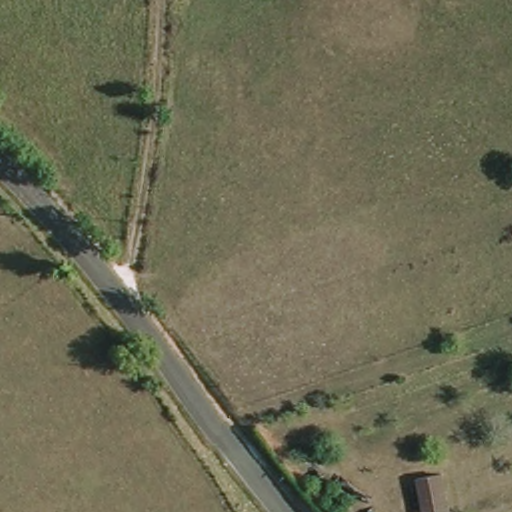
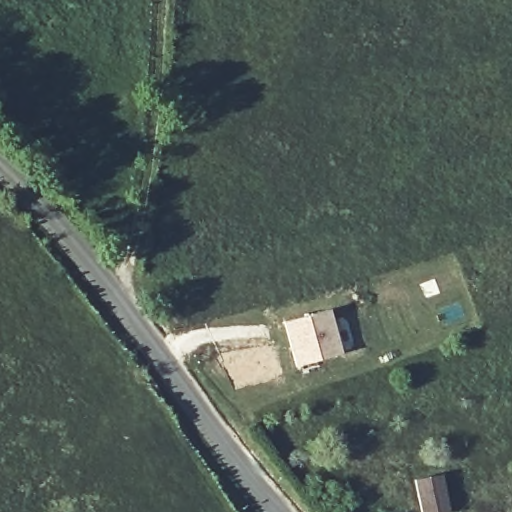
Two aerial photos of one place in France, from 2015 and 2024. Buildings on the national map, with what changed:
new [(343,353),(299,366),(286,322),(331,309),(343,353)]
unchanged [(440,468),(448,505),(423,510),(415,473),(440,468)]

